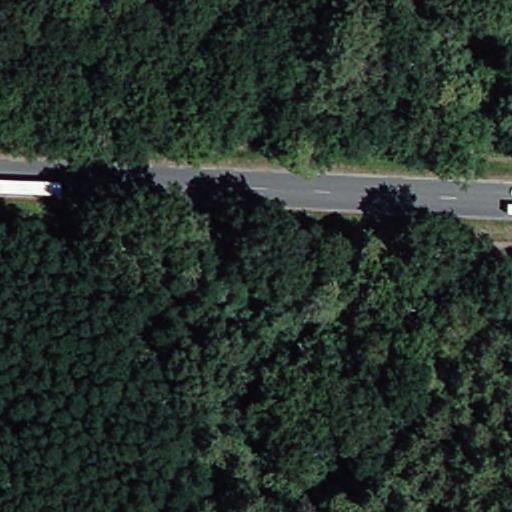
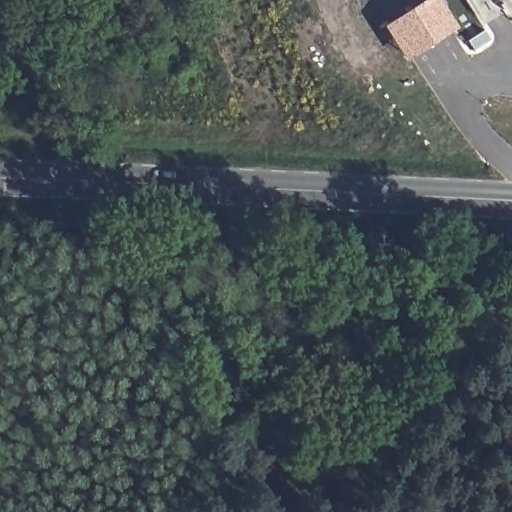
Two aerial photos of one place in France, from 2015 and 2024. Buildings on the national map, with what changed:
new [(438,0),(439,0),(458,29),(414,58),(395,29),(438,0)]

